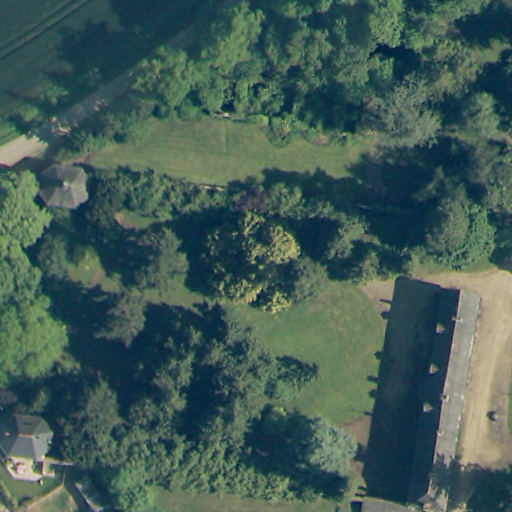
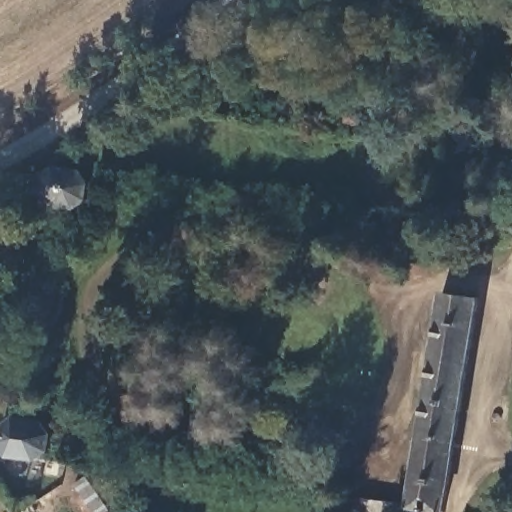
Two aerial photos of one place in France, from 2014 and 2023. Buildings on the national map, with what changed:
unchanged [(65,181),(74,191),(73,206),(60,219),(37,216),(27,195),(40,177),(65,181)]
unchanged [(420,225),(418,243),(393,240),(395,222),(420,225)]
unchanged [(383,498),(404,501),(441,286),(479,293),(445,489),(459,491),(456,512),(426,512),(411,510),(411,512),(354,512),(355,504),(357,494),(383,498)]
unchanged [(38,475),(10,471),(12,459),(0,449),(0,427),(16,413),(35,417),(47,428),(45,450),(30,462),(40,464),(38,475)]

